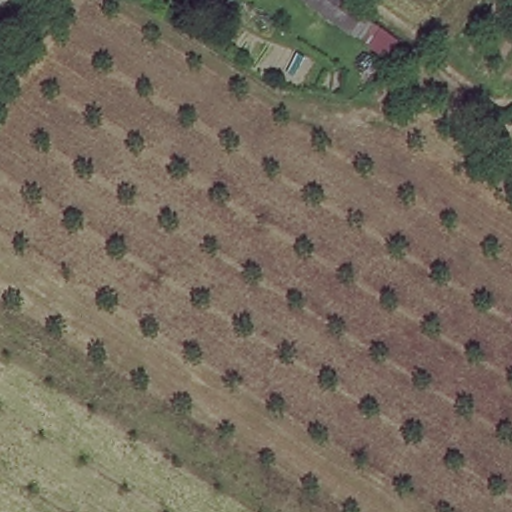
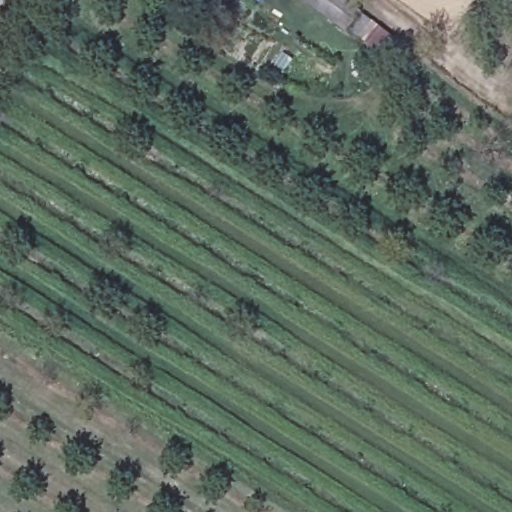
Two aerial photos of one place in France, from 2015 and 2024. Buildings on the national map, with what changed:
unchanged [(302,0),(344,0),(357,10),(341,30),(302,0)]

